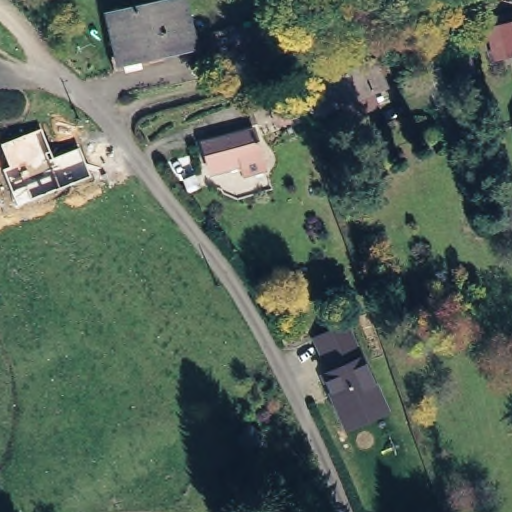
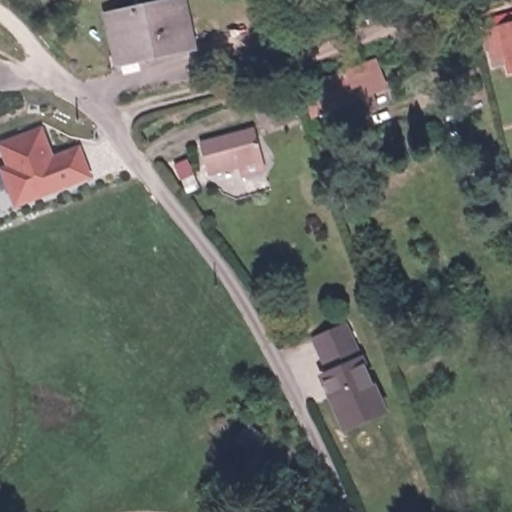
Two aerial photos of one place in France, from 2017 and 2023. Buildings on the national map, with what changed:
unchanged [(185,35),(117,55),(101,14),(150,0),(173,0),(185,35)]
unchanged [(487,29),(495,26),(493,17),(512,12),(512,59),(495,63),(487,29)]
unchanged [(313,102),(302,78),(330,70),(372,56),(385,85),(335,102),(330,98),(322,100),(313,102)]
unchanged [(250,121),(265,165),(207,180),(196,134),(250,121)]
unchanged [(79,147),(91,177),(16,205),(3,170),(8,168),(0,147),(0,144),(40,128),(52,157),(79,147)]
unchanged [(341,434),(315,375),(324,370),(307,336),(347,319),(387,412),(341,434)]
unchanged [(302,500),(287,500),(287,480),(300,481),(302,500)]

